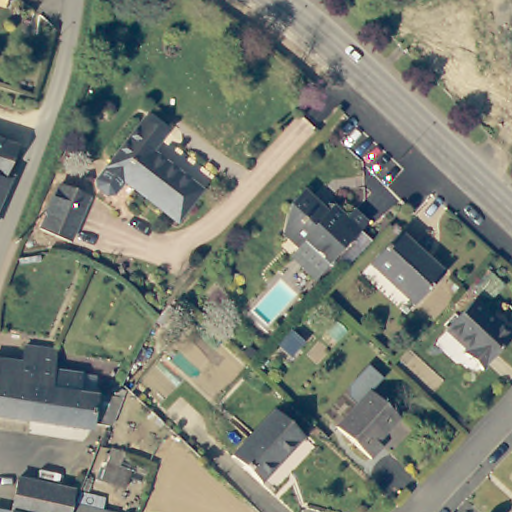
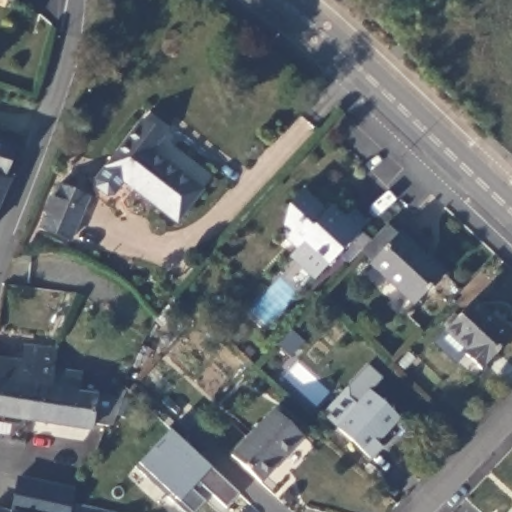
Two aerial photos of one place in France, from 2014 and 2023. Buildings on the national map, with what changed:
unchanged [(163,137),(151,152),(199,192),(173,224),(107,166),(143,122),(163,137)]
unchanged [(16,149),(4,177),(9,179),(0,199),(0,143),(16,149)]
unchanged [(45,232),(64,190),(88,202),(69,243),(45,232)]
unchanged [(288,261),(296,252),(280,237),(284,212),(303,192),(322,210),(334,210),(345,220),(352,212),(366,226),(313,283),(288,261)]
unchanged [(398,235),(441,277),(411,307),(368,265),(398,235)]
unchanged [(46,271),(35,269),(37,254),(48,254),(46,271)]
unchanged [(470,305),(508,342),(477,374),(461,358),(465,355),(443,333),(470,305)]
unchanged [(36,386),(29,385),(24,418),(0,416),(0,361),(18,363),(20,347),(48,351),(46,367),(45,371),(42,387),(36,386)]
unchanged [(87,419),(86,427),(24,418),(29,385),(36,386),(42,387),(45,371),(75,375),(73,392),(111,397),(118,398),(108,422),(101,422),(87,419)]
unchanged [(332,428),(368,391),(397,419),(372,445),(376,448),(364,460),(361,457),(332,428)]
unchanged [(303,438),(261,483),(232,456),(275,411),(303,438)]
new [(198,482),(191,488),(205,502),(196,512),(184,512),(168,497),(171,494),(139,463),(170,430),(232,488),(219,502),(198,482)]
unchanged [(18,478),(72,487),(67,512),(14,512),(12,512),(18,478)]
unchanged [(116,512),(74,512),(76,503),(116,512)]
unchanged [(0,512),(0,509),(12,512),(14,512),(0,512)]

